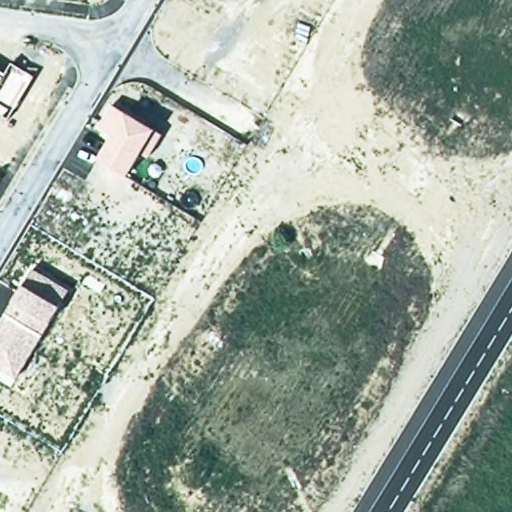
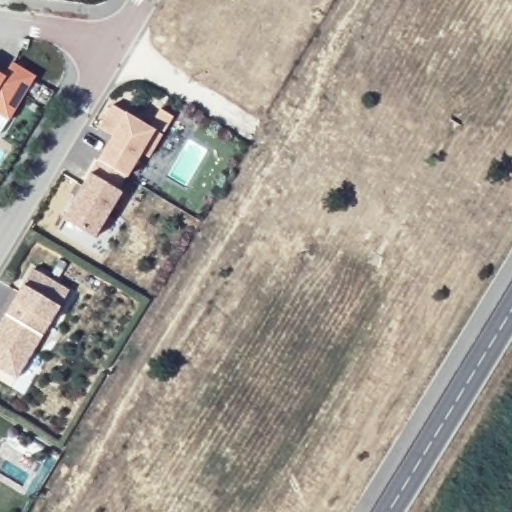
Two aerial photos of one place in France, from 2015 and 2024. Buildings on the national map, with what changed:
unchanged [(0,117),(0,71),(5,74),(12,64),(32,77),(6,120),(0,117)]
unchanged [(142,158),(133,154),(120,177),(95,162),(90,159),(105,136),(91,127),(105,105),(155,134),(142,158)]
new [(126,183),(92,238),(60,219),(95,162),(120,177),(126,183)]
unchanged [(0,322),(32,268),(68,288),(17,377),(0,368),(0,322)]

